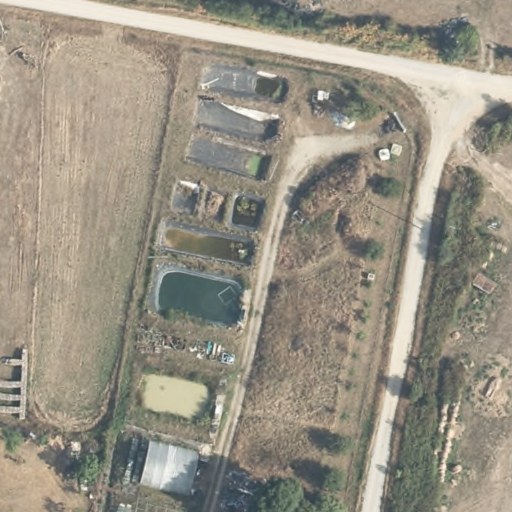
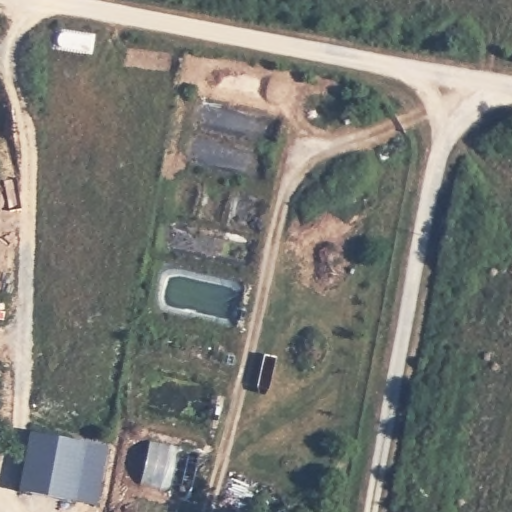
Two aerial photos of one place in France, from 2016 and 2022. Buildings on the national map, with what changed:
new [(18,491),(28,432),(85,443),(74,501),(18,491)]

